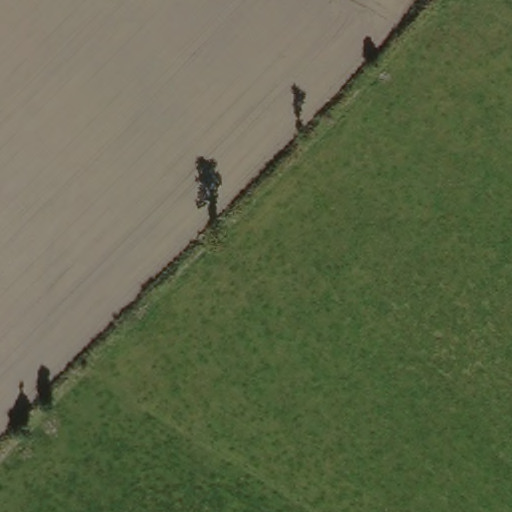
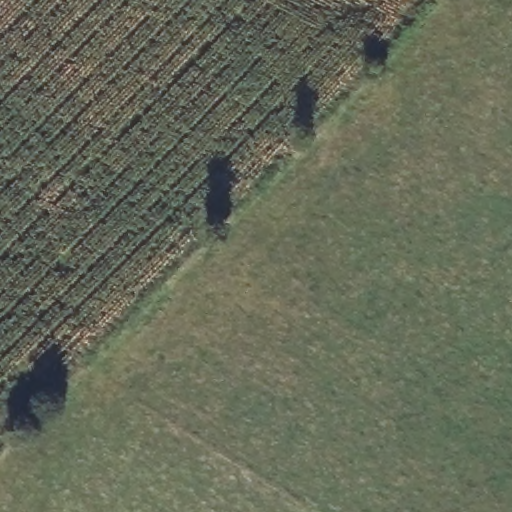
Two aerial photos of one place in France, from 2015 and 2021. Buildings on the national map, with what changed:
[]

